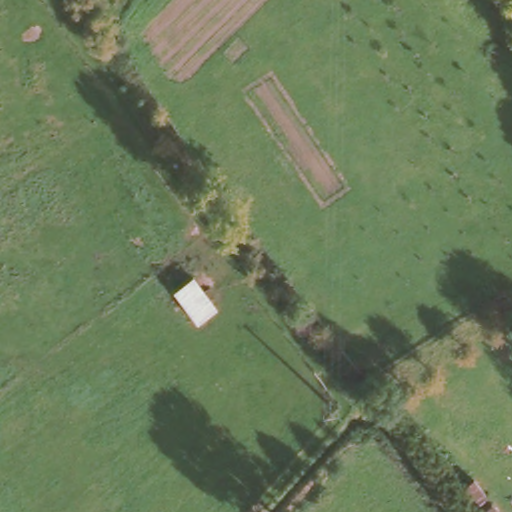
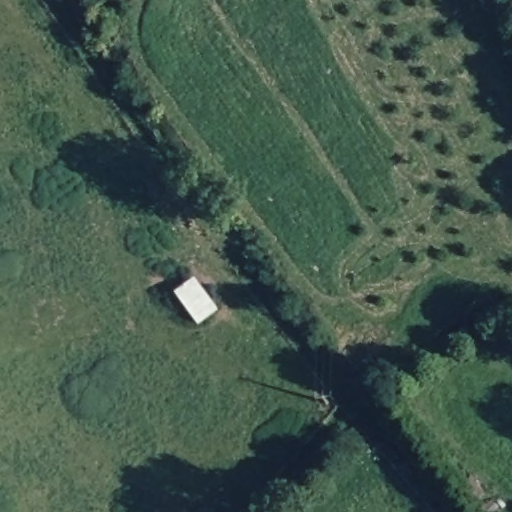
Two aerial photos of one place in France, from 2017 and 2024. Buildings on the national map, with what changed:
unchanged [(173,290),(194,272),(222,305),(198,322),(173,290)]

